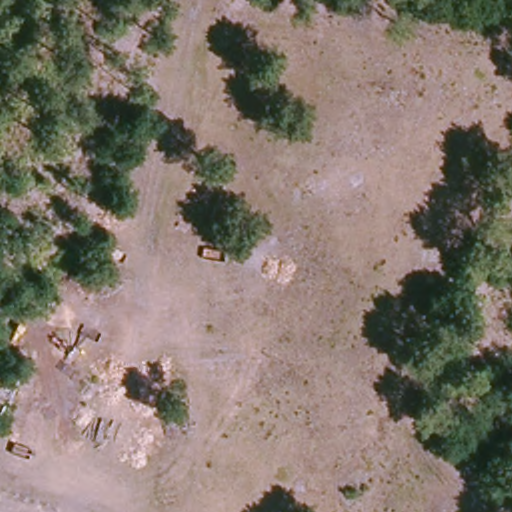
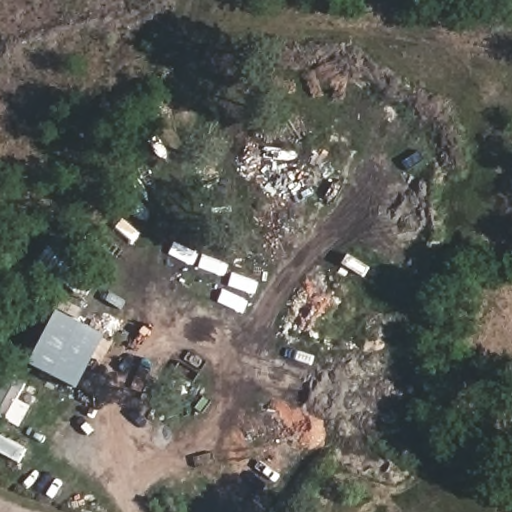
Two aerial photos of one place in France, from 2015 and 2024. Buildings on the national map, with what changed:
new [(78,390),(30,363),(58,312),(106,337),(78,390)]

